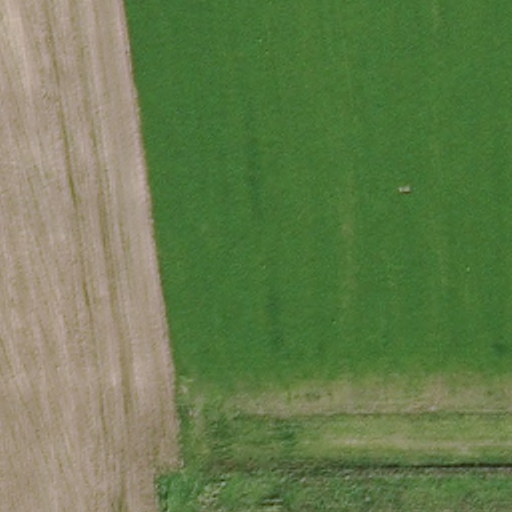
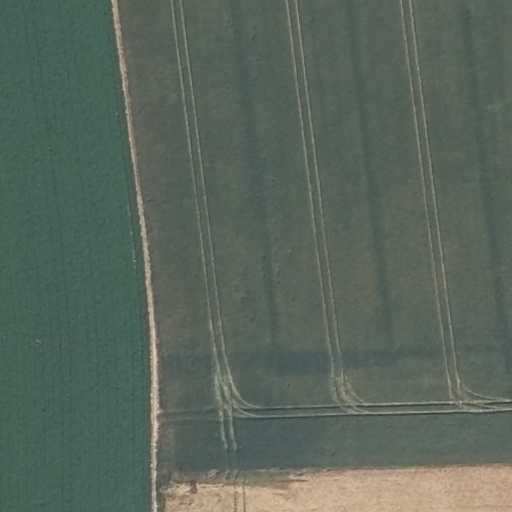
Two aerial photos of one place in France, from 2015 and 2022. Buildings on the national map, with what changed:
[]

